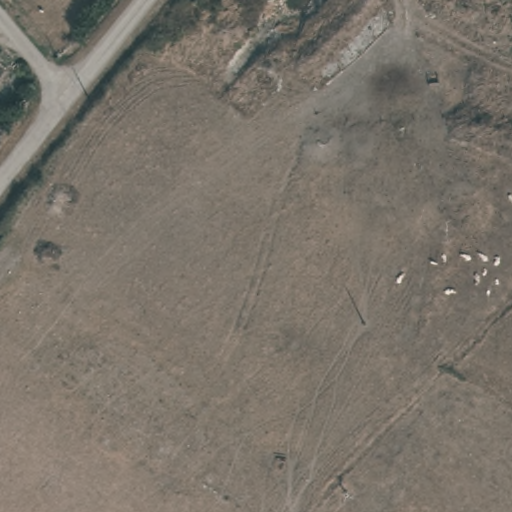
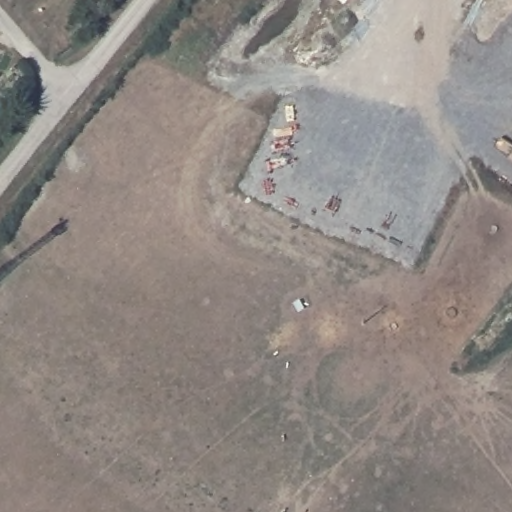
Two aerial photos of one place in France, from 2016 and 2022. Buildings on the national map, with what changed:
[]

